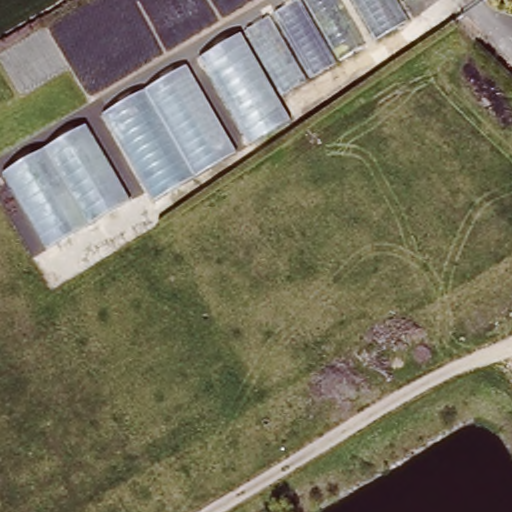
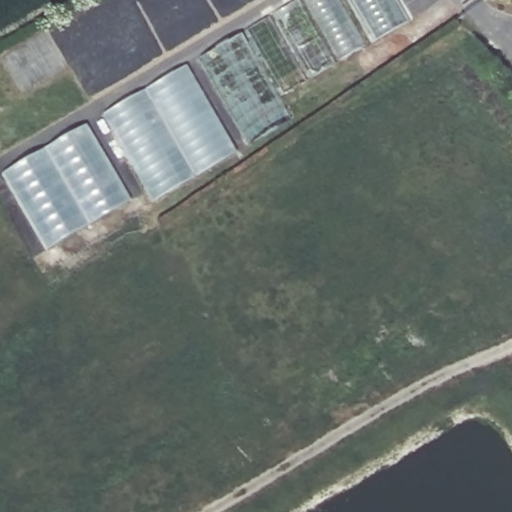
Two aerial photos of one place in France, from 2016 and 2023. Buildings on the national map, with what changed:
unchanged [(294,0),(404,0),(416,20),(283,94),(247,28),(294,0)]
unchanged [(241,33),(291,121),(248,147),(198,59),(241,33)]
unchanged [(189,65),(236,151),(198,179),(145,90),(189,65)]
unchanged [(158,203),(106,114),(145,90),(198,179),(158,203)]
unchanged [(85,125),(131,200),(47,250),(0,174),(85,125)]

